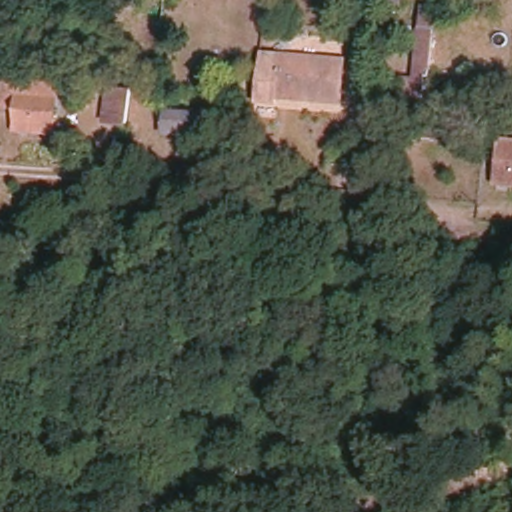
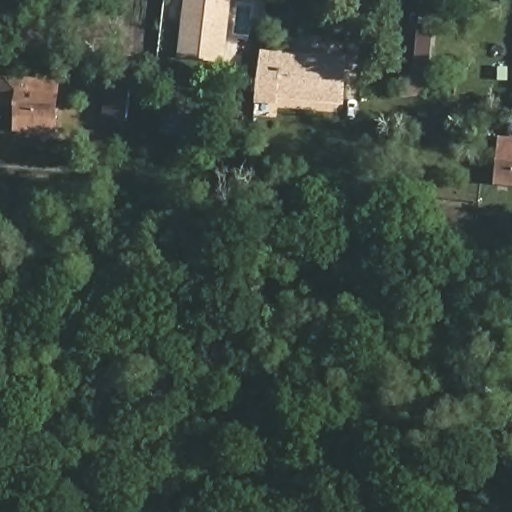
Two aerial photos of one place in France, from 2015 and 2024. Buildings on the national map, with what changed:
new [(226,52),(221,52),(220,62),(177,57),(184,0),(233,0),(226,52)]
unchanged [(378,2),(378,0),(400,0),(400,5),(378,2)]
unchanged [(278,100),(276,110),(256,107),(262,52),(347,61),(342,106),(278,100)]
unchanged [(14,128),(14,106),(0,105),(0,97),(4,79),(61,83),(55,130),(14,128)]
unchanged [(101,120),(107,86),(129,89),(125,124),(101,120)]
unchanged [(163,135),(166,107),(204,111),(202,139),(163,135)]
unchanged [(501,138),(512,139),(512,186),(495,183),(501,138)]
unchanged [(287,218),(285,164),(312,164),(305,219),(287,218)]

